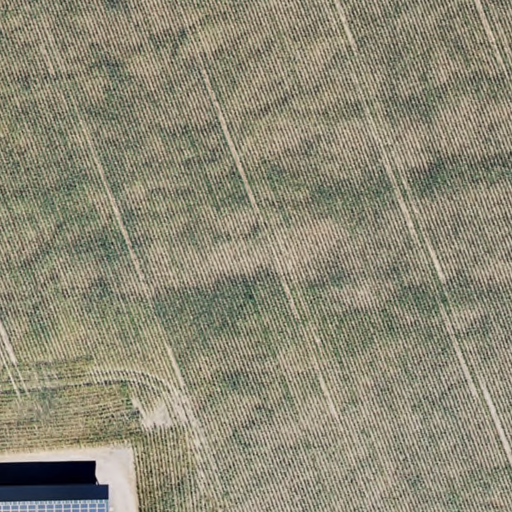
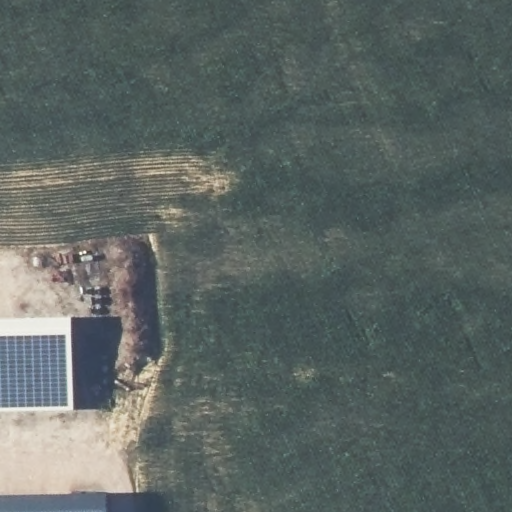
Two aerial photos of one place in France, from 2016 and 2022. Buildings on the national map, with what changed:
new [(0,411),(0,316),(72,315),(74,409),(0,411)]
unchanged [(106,492),(107,512),(0,512),(0,493),(106,492)]

